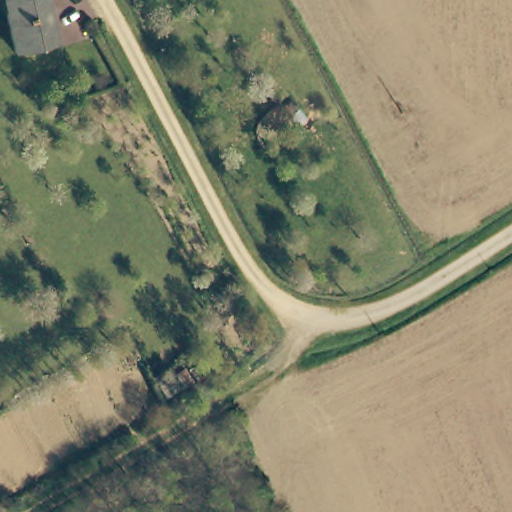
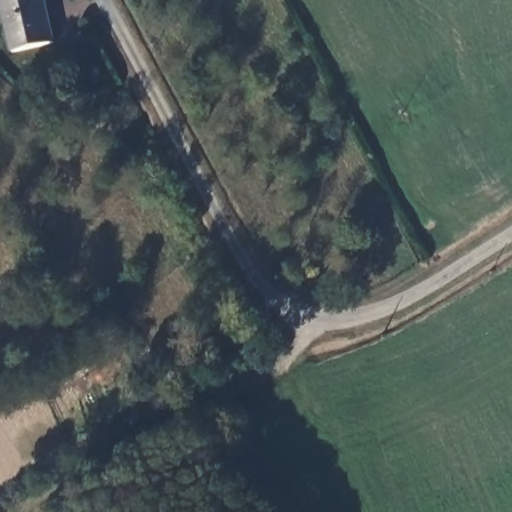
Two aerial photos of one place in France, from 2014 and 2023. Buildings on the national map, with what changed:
unchanged [(14,49),(2,0),(45,0),(55,46),(14,53),(14,49)]

